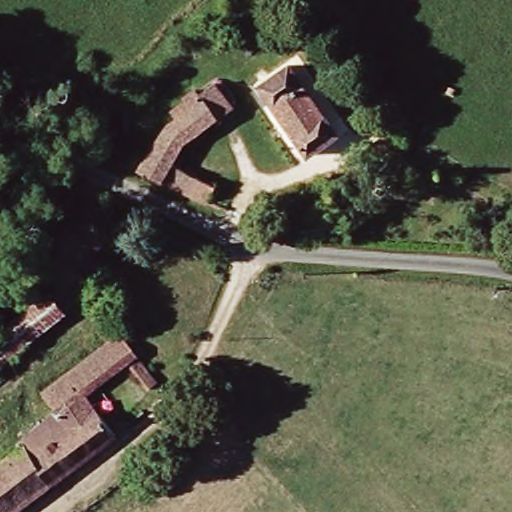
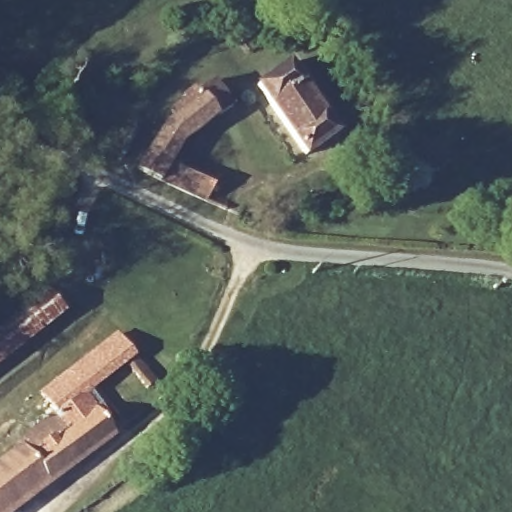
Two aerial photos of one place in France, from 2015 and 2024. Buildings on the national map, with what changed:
unchanged [(308,154),(260,85),(288,65),(337,133),(308,154)]
unchanged [(237,103),(190,141),(176,160),(221,185),(211,202),(142,166),(169,120),(203,94),(200,90),(217,77),(237,103)]
unchanged [(0,350),(0,332),(43,295),(60,317),(25,346),(8,360),(0,350)]
unchanged [(35,430),(62,406),(49,388),(121,328),(136,346),(85,381),(87,385),(85,389),(115,429),(51,480),(25,441),(35,430)]
unchanged [(8,360),(0,367),(0,350),(8,360)]
unchanged [(129,359),(140,350),(161,375),(149,383),(129,359)]
unchanged [(25,441),(51,480),(9,512),(0,512),(0,461),(25,441)]

